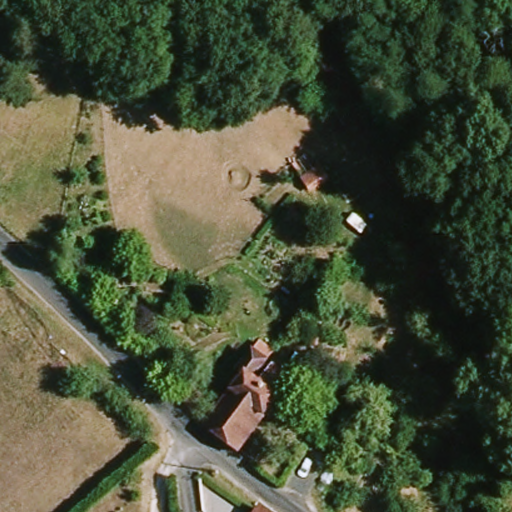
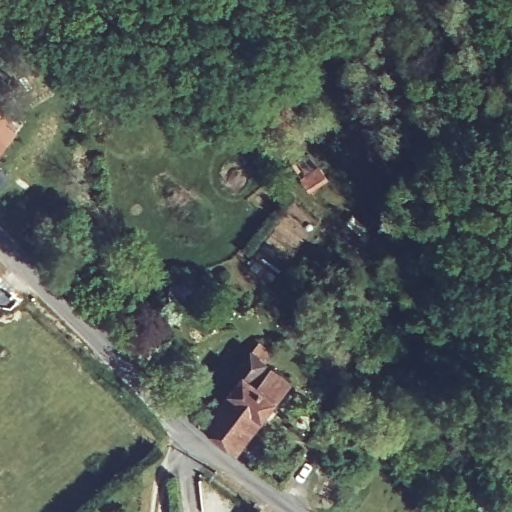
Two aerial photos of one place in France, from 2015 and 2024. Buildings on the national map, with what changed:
new [(9,117),(7,121),(20,130),(1,155),(0,154),(0,111),(9,117)]
unchanged [(318,166),(329,180),(307,195),(297,180),(318,166)]
unchanged [(257,387),(271,368),(293,385),(240,453),(207,426),(244,377),(236,371),(252,352),(263,360),(248,380),(257,387)]
unchanged [(263,512),(262,512),(263,511),(263,512)]

